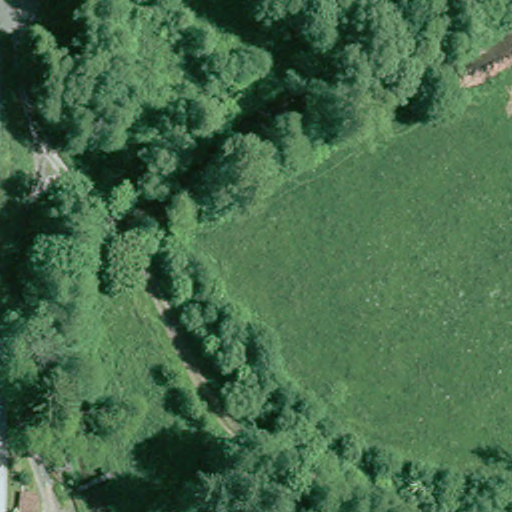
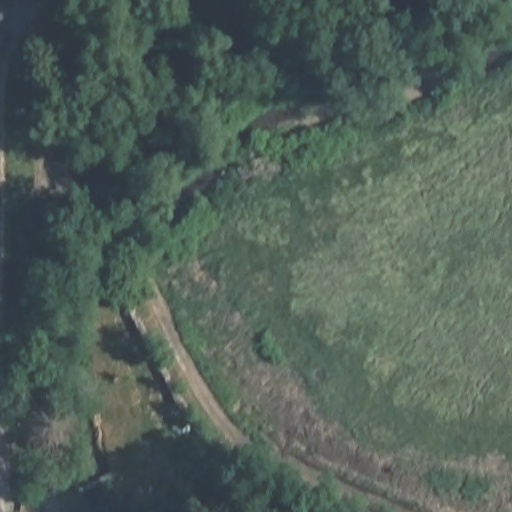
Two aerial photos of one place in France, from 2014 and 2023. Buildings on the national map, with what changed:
unchanged [(44,498),(43,512),(29,512),(31,496),(44,498)]

